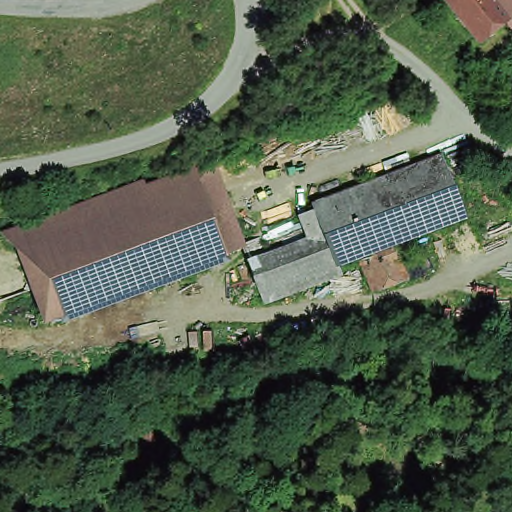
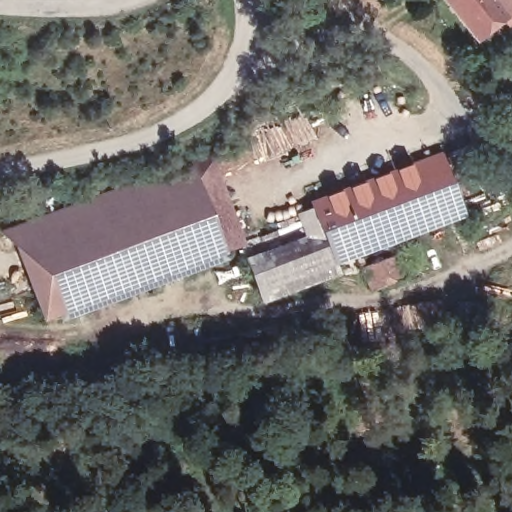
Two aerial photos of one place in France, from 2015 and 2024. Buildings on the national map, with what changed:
unchanged [(444,3),(447,0),(512,0),(512,24),(480,49),(444,3)]
unchanged [(15,229),(147,183),(150,188),(197,170),(193,159),(212,153),(215,164),(240,231),(245,247),(245,248),(246,251),(205,264),(48,321),(15,229)]
unchanged [(251,265),(246,251),(245,248),(245,247),(305,224),(306,226),(322,220),(318,210),(447,160),(456,185),(468,217),(395,244),(362,258),(339,266),(263,295),(251,265)]
unchanged [(410,282),(376,294),(362,258),(395,244),(410,282)]
unchanged [(267,307),(263,295),(339,266),(343,278),(267,307)]

